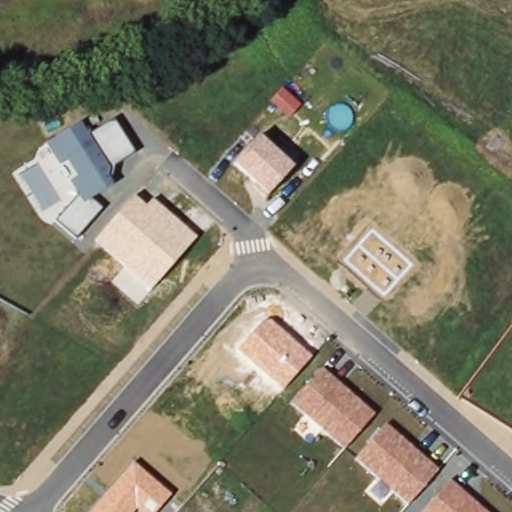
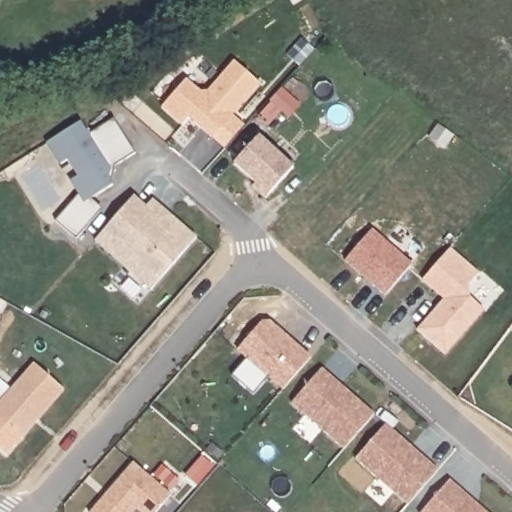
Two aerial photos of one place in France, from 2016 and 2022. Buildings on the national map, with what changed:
new [(161,107),(186,79),(199,90),(208,91),(234,61),(259,83),(212,138),(188,118),(181,125),(161,107)]
unchanged [(54,221),(78,196),(68,180),(76,176),(67,161),(60,166),(44,143),(79,121),(90,135),(114,120),(135,153),(114,166),(112,180),(114,186),(91,199),(100,210),(75,239),(54,221)]
unchanged [(232,163),(259,135),(293,166),(267,195),(232,163)]
unchanged [(134,197),(146,207),(153,199),(196,239),(149,290),(94,242),(134,197)]
new [(373,232),(413,267),(386,298),(346,263),(373,232)]
new [(446,298),(424,279),(450,248),(478,273),(469,283),(470,298),(485,309),(445,353),(419,329),(446,298)]
unchanged [(237,350),(263,321),(271,321),(311,358),(282,389),(237,350)]
new [(33,364),(64,391),(21,440),(0,421),(0,403),(33,364)]
unchanged [(322,368),(373,413),(343,447),(292,403),(322,368)]
unchanged [(386,423),(437,470),(407,504),(354,458),(386,423)]
unchanged [(134,463),(171,496),(156,512),(140,512),(136,509),(133,512),(91,512),(90,512),(134,463)]
unchanged [(485,512),(422,512),(450,479),(485,512)]

